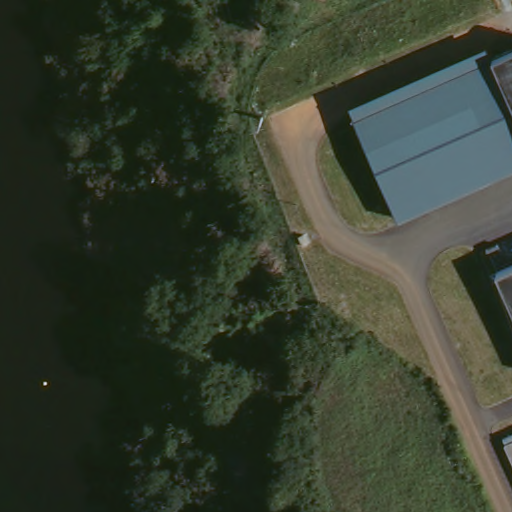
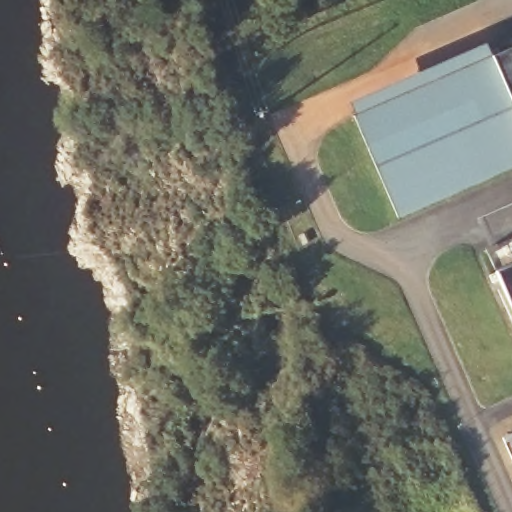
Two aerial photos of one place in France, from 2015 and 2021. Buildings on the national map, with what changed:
unchanged [(512,163),(392,215),(348,115),(512,43),(512,163)]
unchanged [(512,327),(491,281),(512,272),(512,327)]
unchanged [(512,435),(512,474),(497,442),(512,435)]

